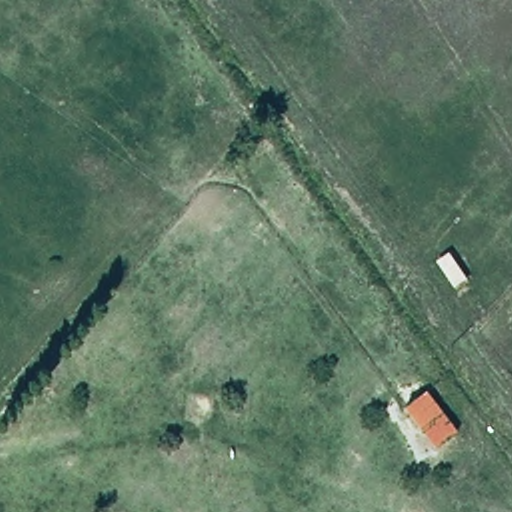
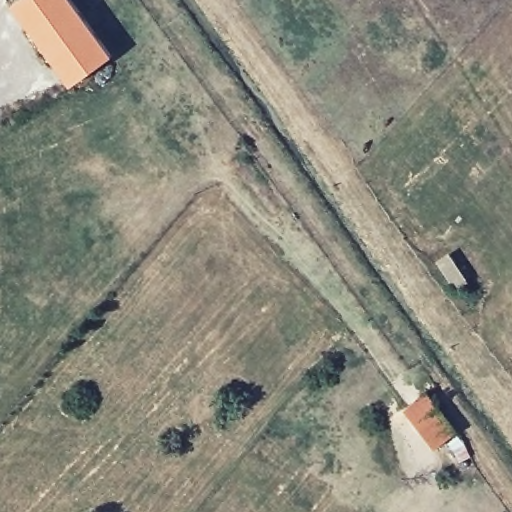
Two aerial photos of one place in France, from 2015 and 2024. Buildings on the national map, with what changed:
new [(20,0),(76,0),(115,57),(73,85),(17,3),(20,0)]
unchanged [(447,253),(465,283),(452,292),(432,262),(447,253)]
unchanged [(437,454),(402,413),(422,396),(457,437),(437,454)]

